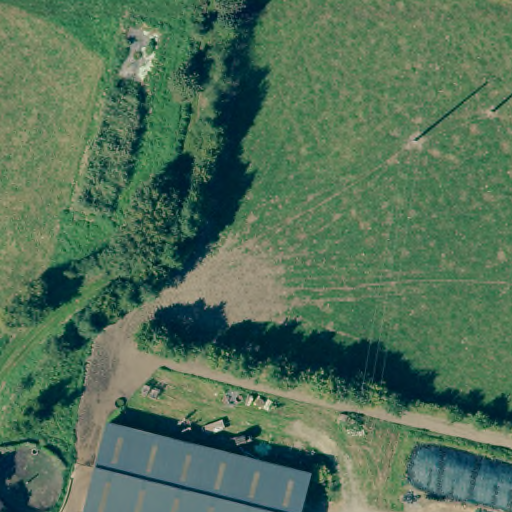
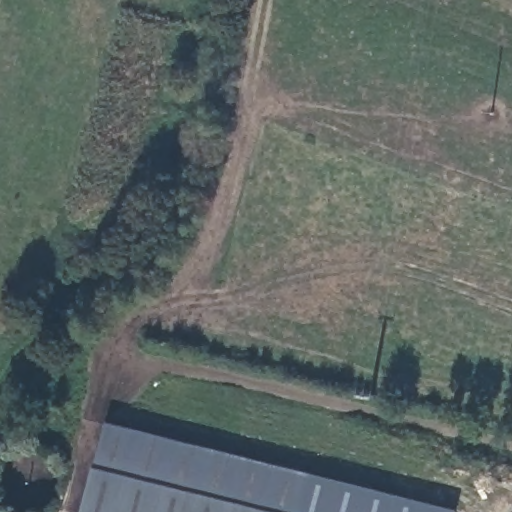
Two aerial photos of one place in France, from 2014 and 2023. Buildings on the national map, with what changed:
unchanged [(103,425),(309,473),(300,512),(83,512),(93,470),(94,465),(103,425)]
new [(459,511),(459,512),(300,512),(309,473),(459,511)]

